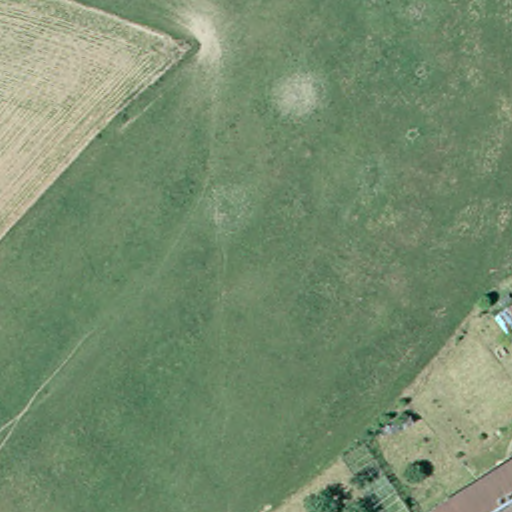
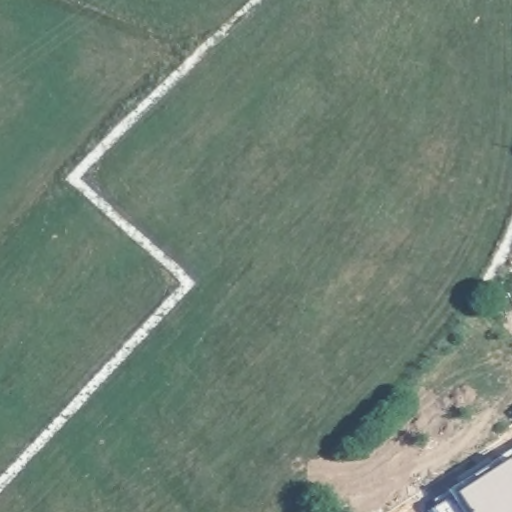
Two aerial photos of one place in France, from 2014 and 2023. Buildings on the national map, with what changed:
unchanged [(512,303),(512,335),(496,314),(512,303)]
unchanged [(475,470),(485,463),(489,470),(512,455),(512,512),(427,512),(478,477),(475,470)]

